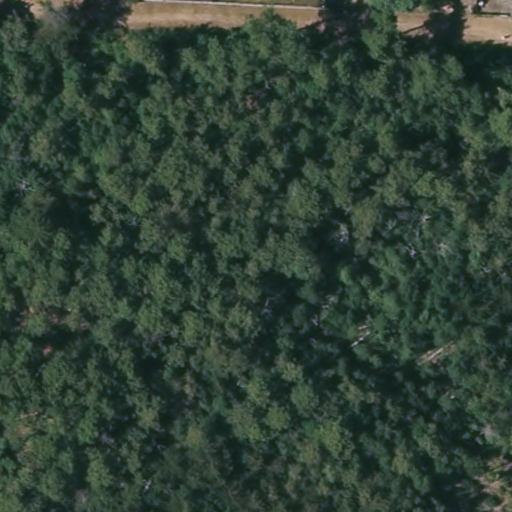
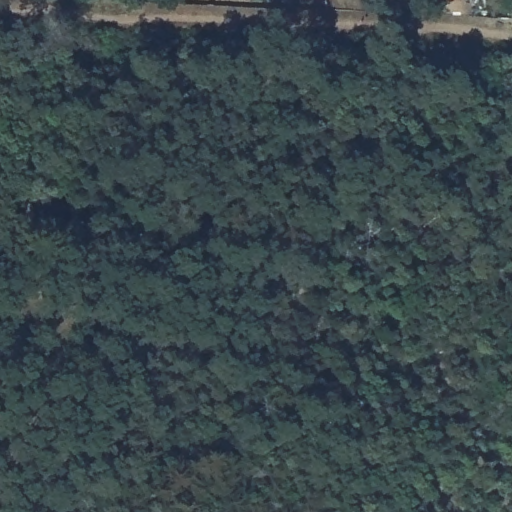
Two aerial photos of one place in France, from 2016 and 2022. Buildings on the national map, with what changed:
unchanged [(512,19),(511,19),(511,4),(512,4),(512,19)]

